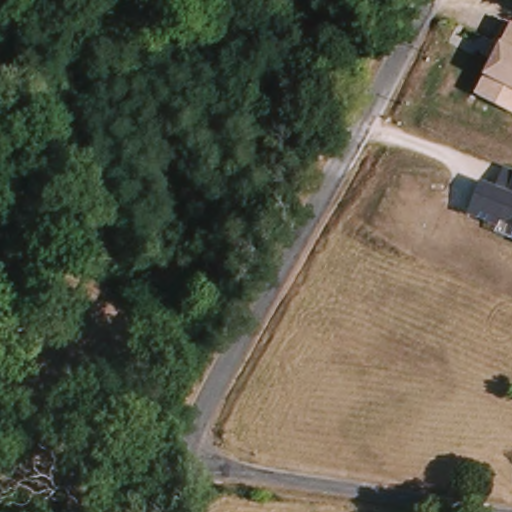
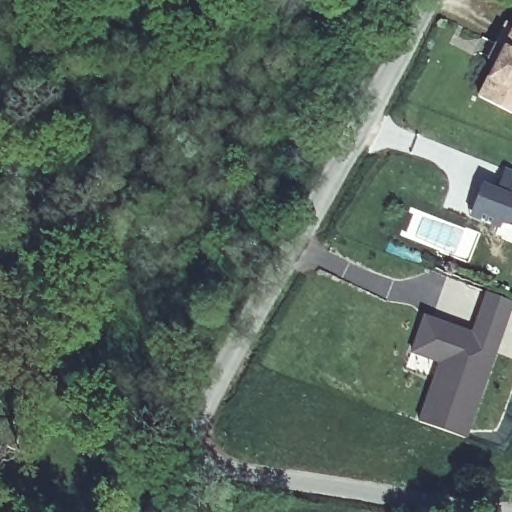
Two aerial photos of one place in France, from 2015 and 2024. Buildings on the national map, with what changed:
unchanged [(512,115),(477,98),(494,62),(487,59),(495,42),(504,21),(512,25),(512,115)]
unchanged [(504,170),(512,172),(512,231),(473,215),(483,184),(496,189),(504,170)]
new [(482,303),(488,287),(512,297),(512,303),(508,313),(499,339),(464,433),(418,416),(435,371),(440,356),(412,346),(414,342),(425,311),(447,320),(472,329),(482,303)]

